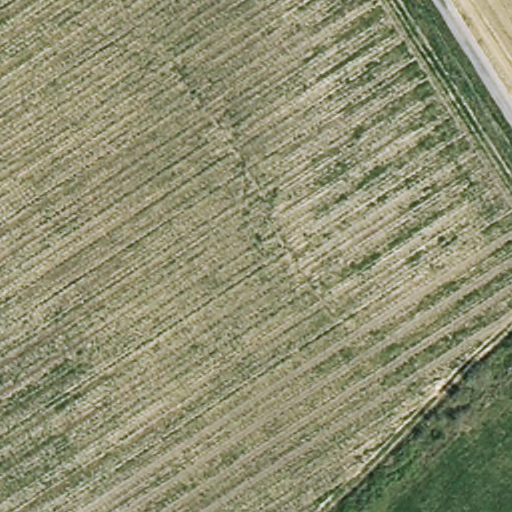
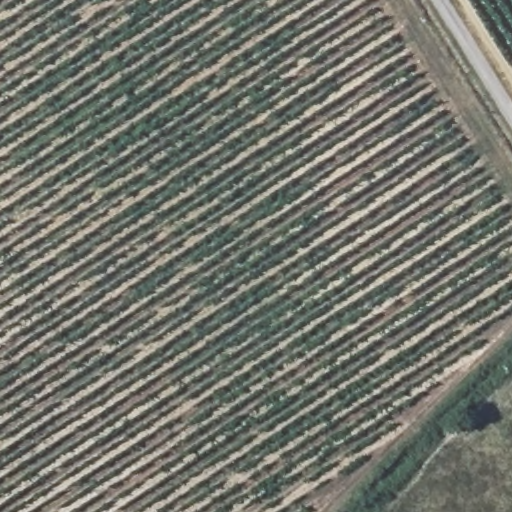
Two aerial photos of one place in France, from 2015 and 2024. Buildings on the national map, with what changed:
[]

